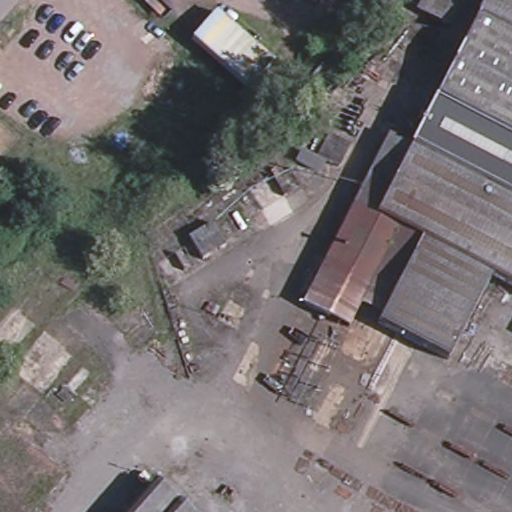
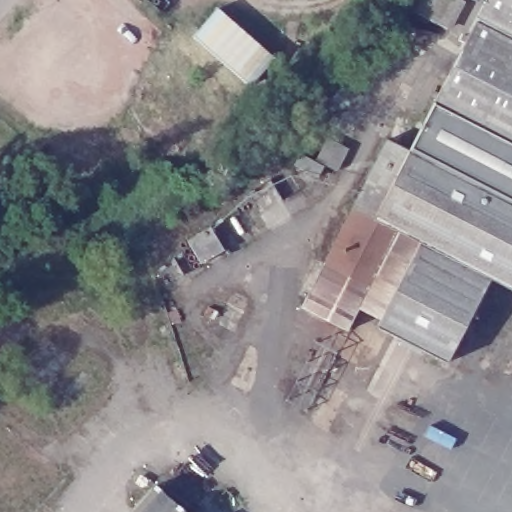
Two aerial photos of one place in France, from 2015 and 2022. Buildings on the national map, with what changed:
unchanged [(419,12),(426,0),(461,0),(448,26),(419,12)]
unchanged [(435,102),(448,77),(486,0),(512,0),(512,141),(435,102)]
unchanged [(477,0),(477,1),(476,0),(477,0)]
unchanged [(213,8),(271,58),(246,86),(189,36),(213,8)]
unchanged [(353,136),(331,125),(343,104),(364,116),(353,136)]
unchanged [(371,217),(344,269),(319,256),(384,132),(512,199),(512,290),(489,278),(371,217)]
unchanged [(371,217),(489,278),(448,357),(379,320),(392,295),(374,285),(349,332),(294,303),(319,256),(344,269),(371,217)]
unchanged [(153,485),(183,512),(128,512),(153,485)]

